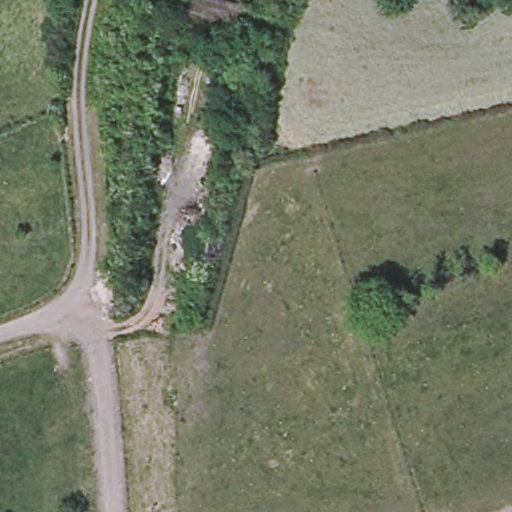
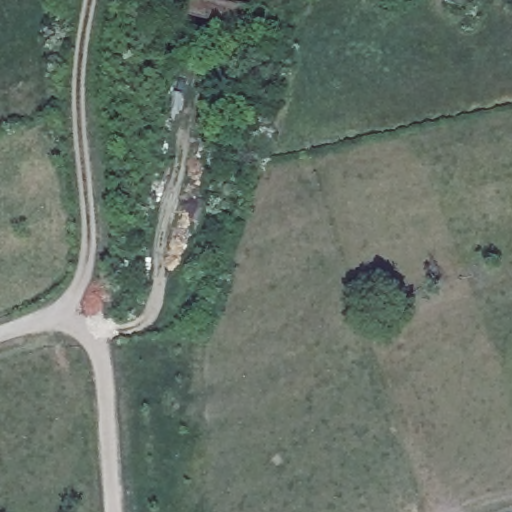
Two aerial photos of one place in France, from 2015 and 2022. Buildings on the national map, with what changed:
[]

